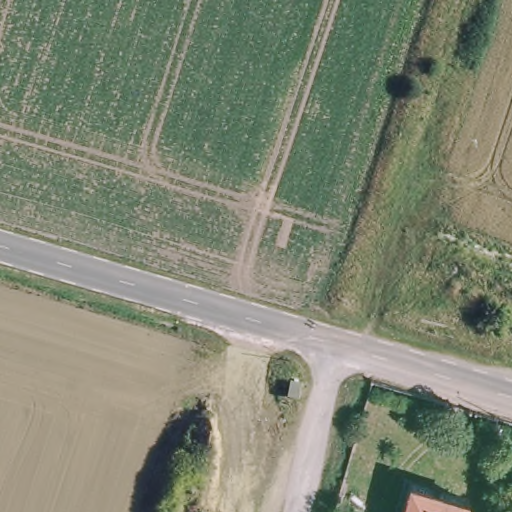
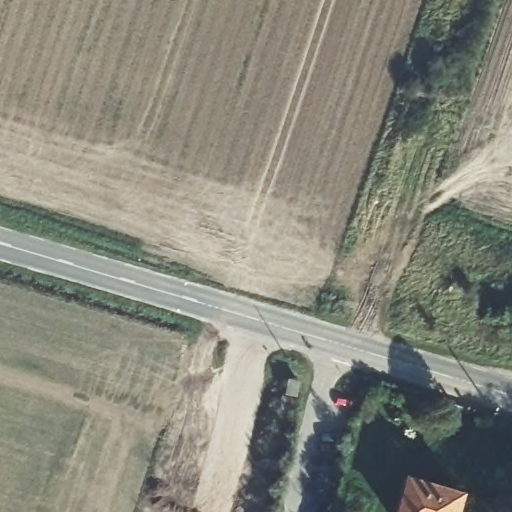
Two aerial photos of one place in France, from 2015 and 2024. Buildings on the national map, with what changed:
unchanged [(461,512),(402,512),(411,479),(466,494),(461,512)]

